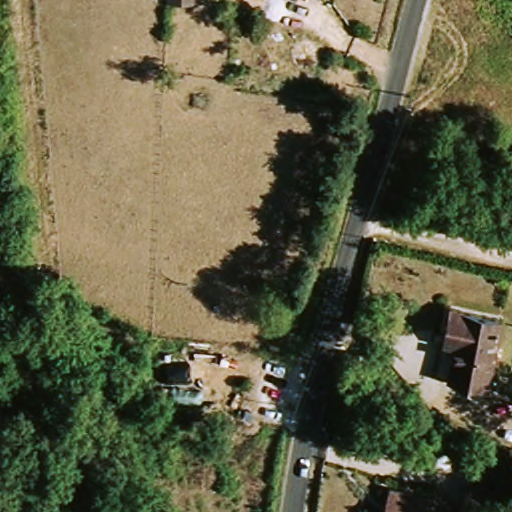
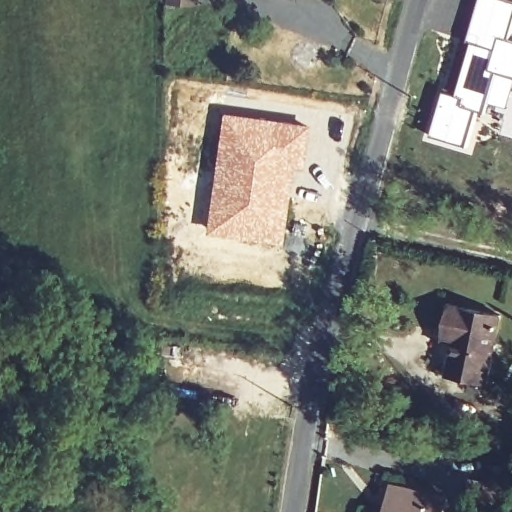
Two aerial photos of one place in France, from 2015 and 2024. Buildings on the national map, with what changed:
unchanged [(166,0),(194,0),(193,1),(166,0)]
new [(512,28),(509,40),(512,41),(512,76),(498,73),(487,112),(478,110),(467,146),(432,136),(444,93),(457,96),(473,44),(469,42),(480,0),(509,0),(512,1),(512,28)]
new [(221,111),(311,124),(304,170),(295,169),(283,243),(204,230),(221,111)]
unchanged [(443,340),(448,308),(496,315),(486,381),(447,374),(452,342),(443,340)]
new [(496,512),(459,512),(468,476),(498,483),(495,493),(504,495),(501,511),(496,512)]
demolished [(461,509),(466,478),(506,485),(500,512),(476,512),(473,512),(461,509)]
unchanged [(443,512),(379,512),(384,491),(398,493),(444,504),(443,512)]

